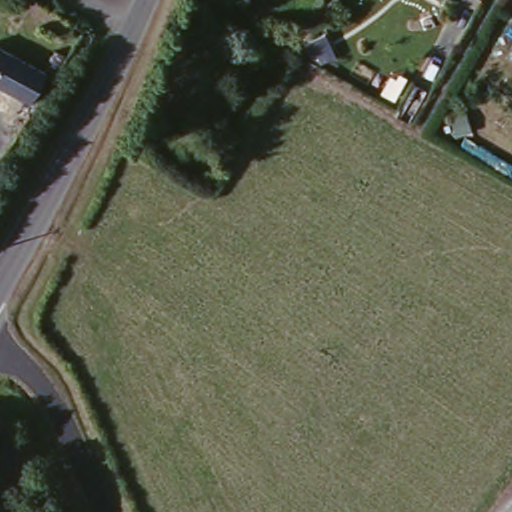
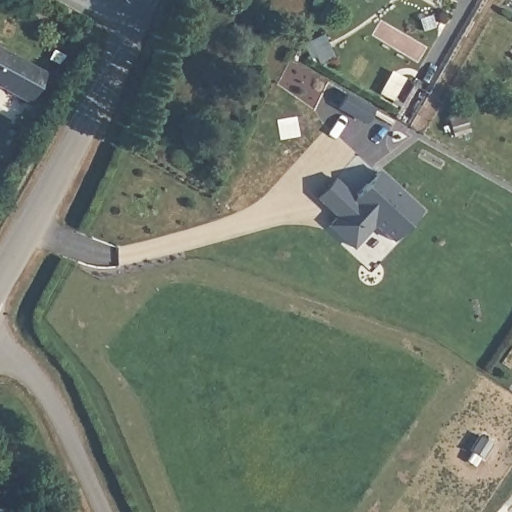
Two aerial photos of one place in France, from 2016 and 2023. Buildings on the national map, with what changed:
new [(313,68),(302,44),(323,34),(335,59),(313,68)]
unchanged [(47,68),(31,100),(0,84),(0,45),(47,68)]
new [(452,139),(445,114),(464,109),(471,134),(452,139)]
new [(392,240),(373,224),(353,248),(328,226),(336,216),(316,198),(333,180),(353,197),(376,172),(419,211),(392,240)]

